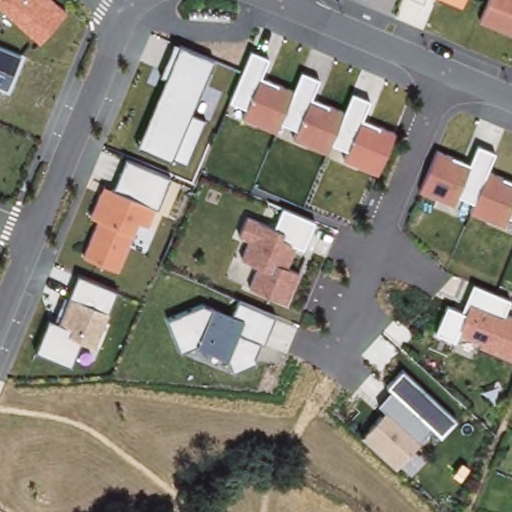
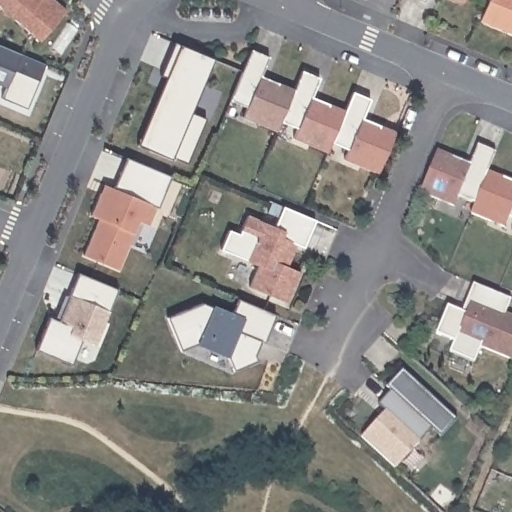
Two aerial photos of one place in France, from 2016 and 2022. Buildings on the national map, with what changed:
unchanged [(39,43),(0,10),(0,0),(57,0),(68,8),(39,43)]
unchanged [(417,0),(425,0),(424,3),(417,0)]
unchanged [(456,0),(462,0),(461,2),(456,0)]
unchanged [(480,20),(489,0),(512,0),(512,34),(480,20)]
unchanged [(179,46),(213,59),(191,114),(204,120),(187,163),(172,156),(171,159),(138,146),(179,46)]
unchanged [(6,89),(0,87),(0,47),(21,55),(6,89)]
unchanged [(270,56),(260,77),(294,89),(301,70),(319,78),(312,97),(345,110),(353,91),(370,98),(364,118),(395,130),(377,174),(343,161),(347,150),(331,143),(327,153),(292,140),(296,128),(281,123),(277,131),(243,118),(246,109),(229,101),(251,48),(270,56)]
unchanged [(471,162),(478,144),(496,151),(488,172),(512,182),(512,220),(509,219),(506,228),(470,214),(474,204),(458,197),(453,205),(421,192),(439,147),(471,162)]
unchanged [(170,176),(148,227),(139,222),(119,271),(85,256),(100,219),(91,214),(104,183),(113,188),(126,158),(170,176)]
unchanged [(274,226),(283,207),(316,222),(305,248),(296,244),(287,265),(300,271),(287,302),(249,288),(257,267),(240,258),(248,241),(239,236),(248,214),(274,226)]
unchanged [(117,288),(96,345),(81,339),(71,363),(36,349),(47,318),(59,323),(78,275),(117,288)]
unchanged [(471,304),(460,333),(455,342),(436,334),(448,303),(461,309),(472,282),(511,298),(504,314),(471,304)]
unchanged [(232,313),(238,301),(274,316),(263,343),(259,341),(253,355),(257,360),(234,369),(228,357),(196,344),(182,349),(168,319),(204,304),(232,313)]
unchanged [(512,317),(512,356),(460,333),(471,304),(512,317)]
unchanged [(391,390),(387,386),(403,370),(457,419),(440,437),(432,428),(391,390)]
unchanged [(432,428),(395,469),(362,436),(385,411),(378,403),(391,390),(432,428)]

